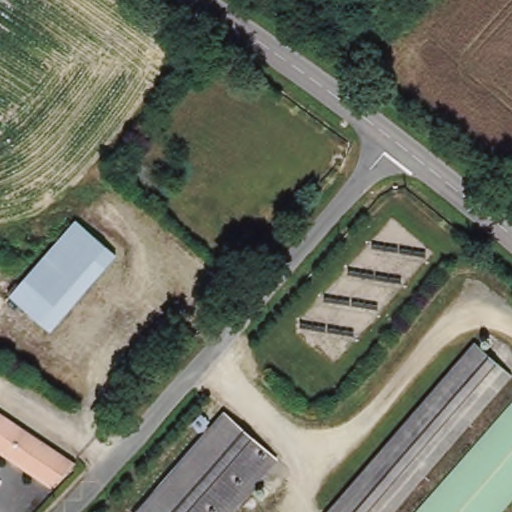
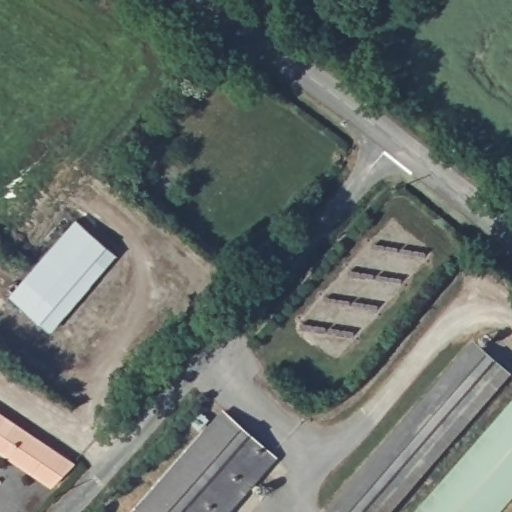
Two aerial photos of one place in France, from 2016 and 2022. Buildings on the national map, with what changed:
unchanged [(113,248),(45,326),(15,301),(82,222),(113,248)]
unchanged [(512,377),(395,512),(338,512),(480,346),(512,372),(512,377)]
unchanged [(416,512),(512,403),(512,500),(501,512),(416,512)]
unchanged [(77,462),(55,488),(0,448),(0,409),(77,462)]
unchanged [(231,512),(145,512),(230,415),(279,456),(231,512)]

